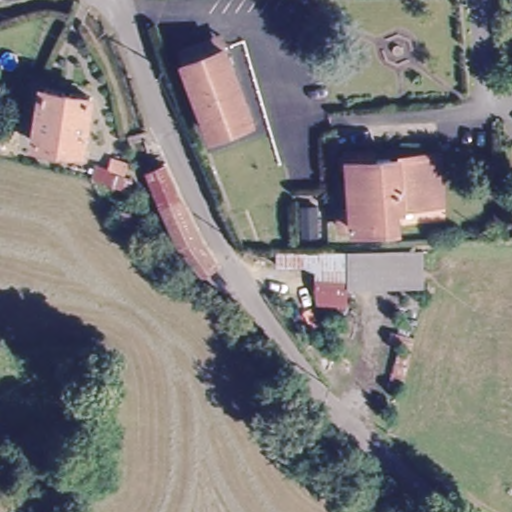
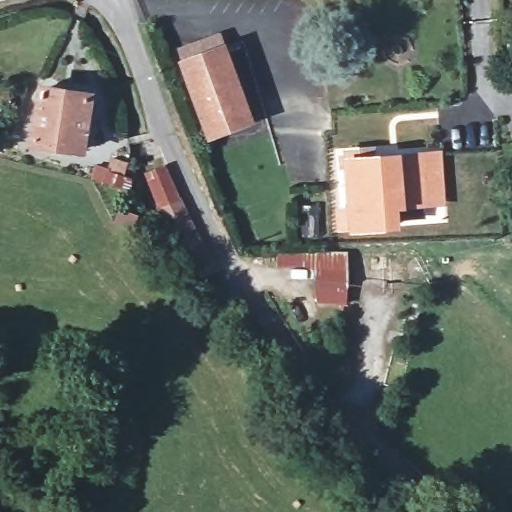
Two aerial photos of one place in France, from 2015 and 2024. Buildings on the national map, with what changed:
unchanged [(212,139),(188,66),(184,53),(222,40),(227,53),(252,125),(212,139)]
unchanged [(91,90),(81,146),(34,137),(45,81),(91,90)]
unchanged [(399,222),(348,225),(347,207),(357,206),(353,152),(376,150),(377,158),(429,153),(443,152),(447,199),(432,200),(398,202),(399,222)]
unchanged [(177,201),(213,263),(198,275),(173,244),(149,166),(162,161),(177,201)]
unchanged [(307,220),(325,219),(327,250),(426,248),(426,287),(302,289),(301,270),(279,269),(278,252),(310,251),(307,220)]

